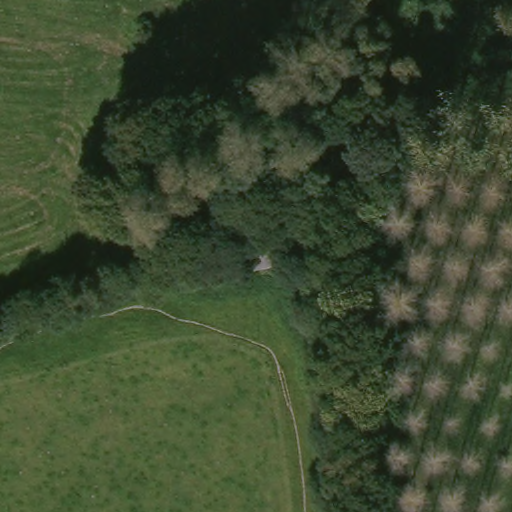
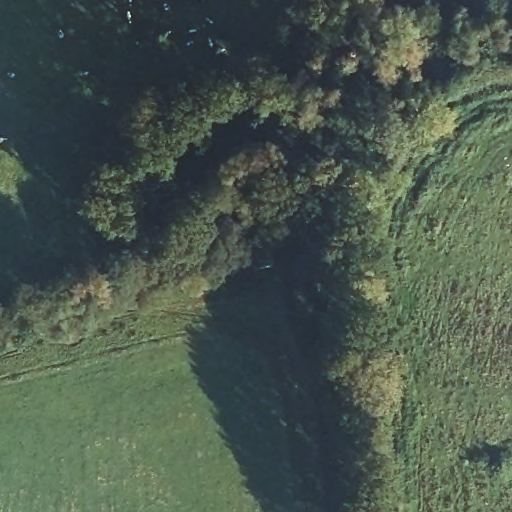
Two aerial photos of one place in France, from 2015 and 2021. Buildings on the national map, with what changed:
unchanged [(268,234),(275,268),(247,275),(238,241),(268,234)]

